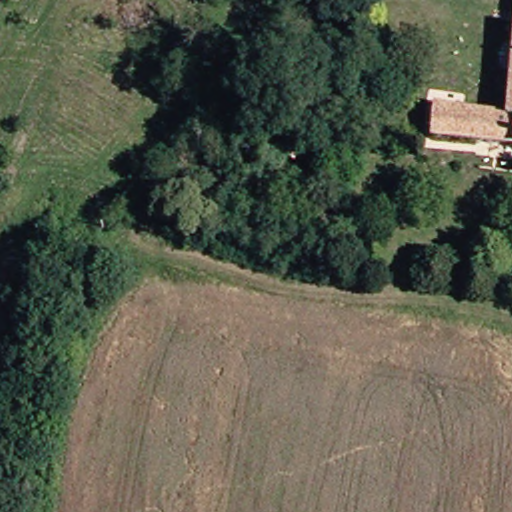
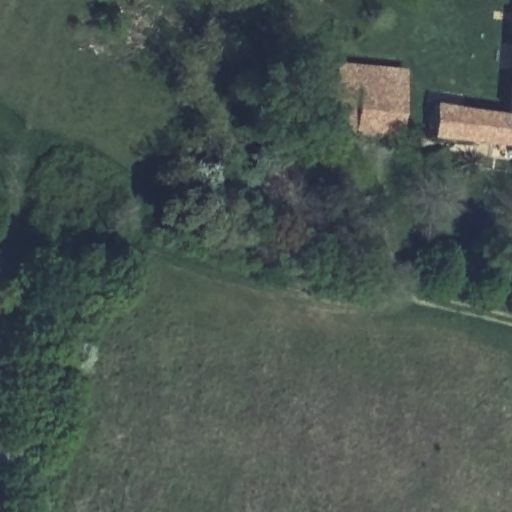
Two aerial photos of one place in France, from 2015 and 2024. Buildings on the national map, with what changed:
unchanged [(511,38),(512,38),(512,59),(508,58),(511,38)]
new [(338,62),(406,70),(399,136),(331,129),(338,62)]
demolished [(393,83),(403,83),(406,76),(428,80),(425,103),(393,95),(392,98),(370,94),(370,88),(391,91),(393,83)]
unchanged [(452,135),(439,133),(444,101),(512,111),(512,143),(485,139),(483,150),(450,146),(452,135)]

